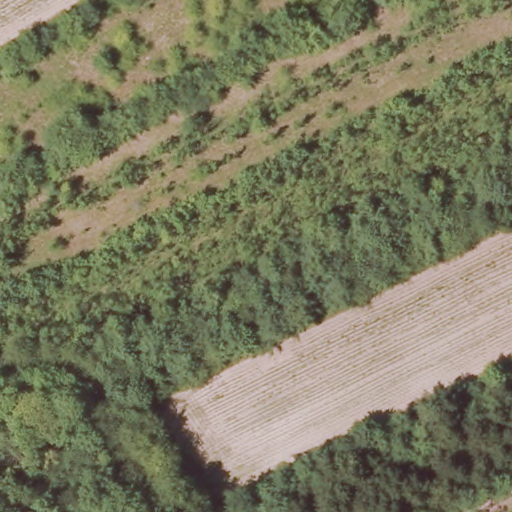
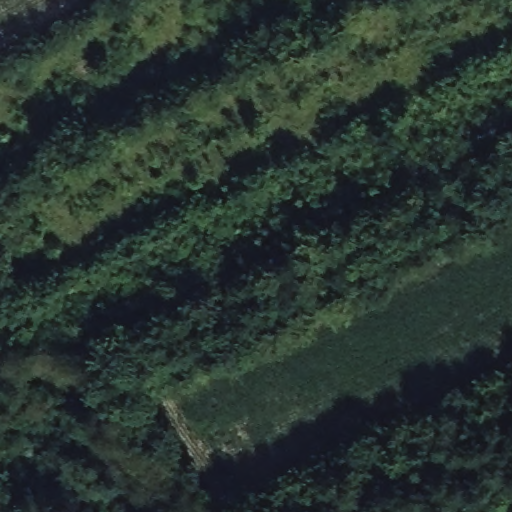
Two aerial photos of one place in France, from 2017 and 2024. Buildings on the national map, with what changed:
[]

